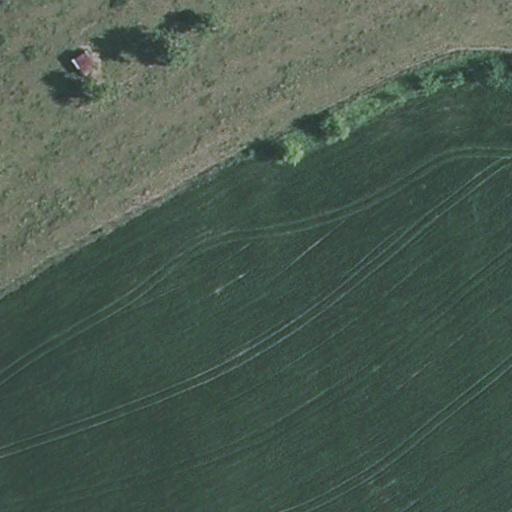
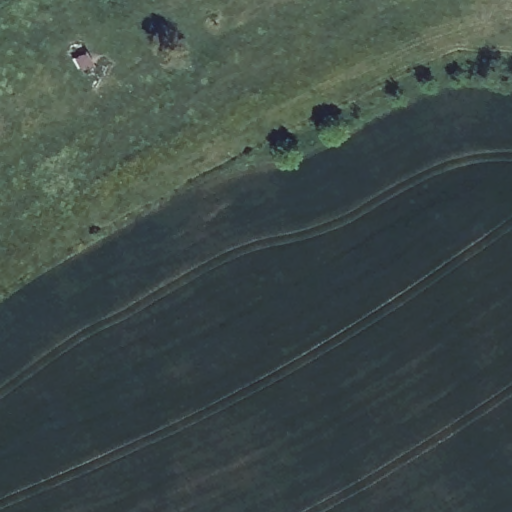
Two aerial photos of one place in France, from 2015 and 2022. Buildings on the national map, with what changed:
unchanged [(85,46),(99,64),(87,76),(72,59),(85,46)]

